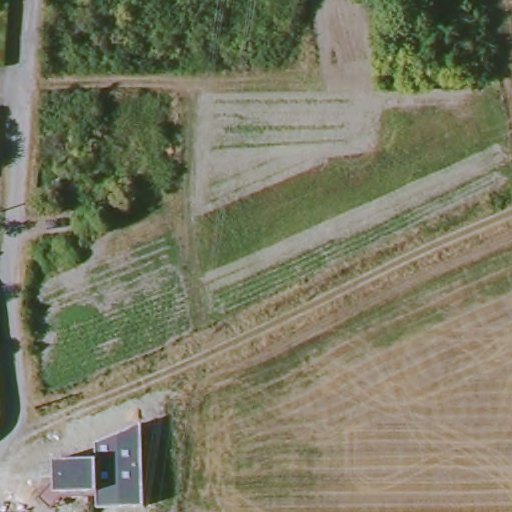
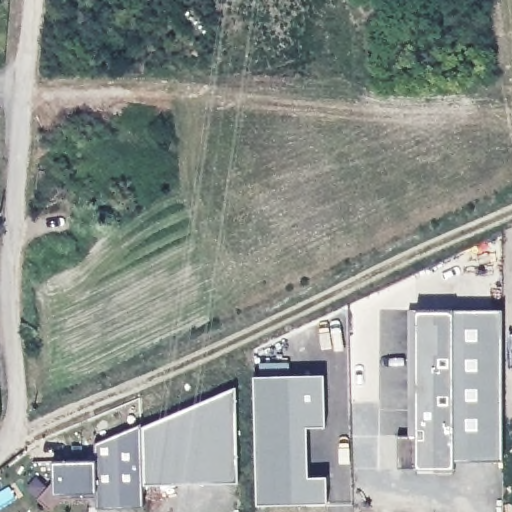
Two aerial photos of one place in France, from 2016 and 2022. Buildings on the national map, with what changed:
demolished [(35,165),(63,165),(62,188),(33,187),(35,165)]
new [(397,469),(397,437),(408,436),(407,309),(501,309),(502,460),(455,460),(453,469),(397,469)]
new [(253,378),(323,377),(323,429),(307,429),(308,479),(326,479),(325,506),(256,507),(253,378)]
new [(148,428),(235,389),(238,482),(150,484),(148,428)]
new [(102,464),(101,448),(148,428),(150,512),(126,512),(102,512),(102,497),(90,497),(91,502),(73,503),(73,498),(70,498),(60,488),(59,465),(102,464)]

